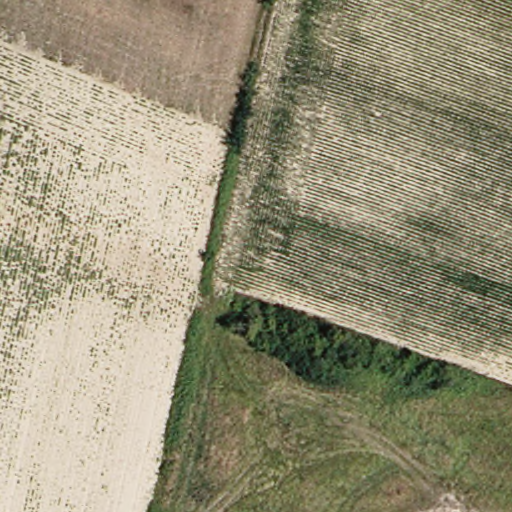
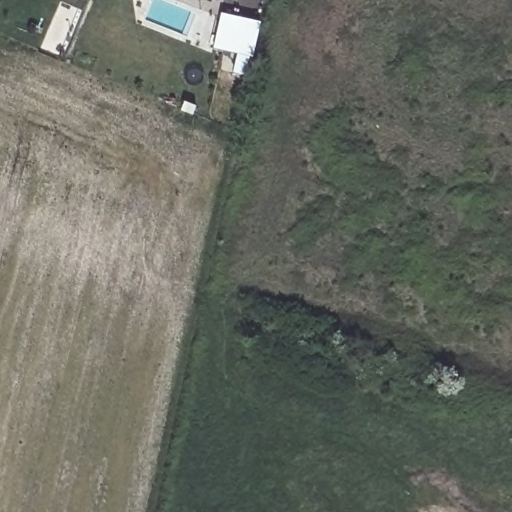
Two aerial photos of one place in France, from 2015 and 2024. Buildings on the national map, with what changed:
new [(226,12),(260,20),(252,57),(217,49),(226,12)]

